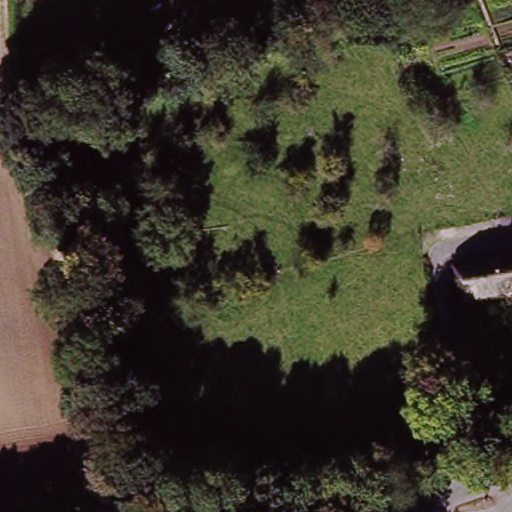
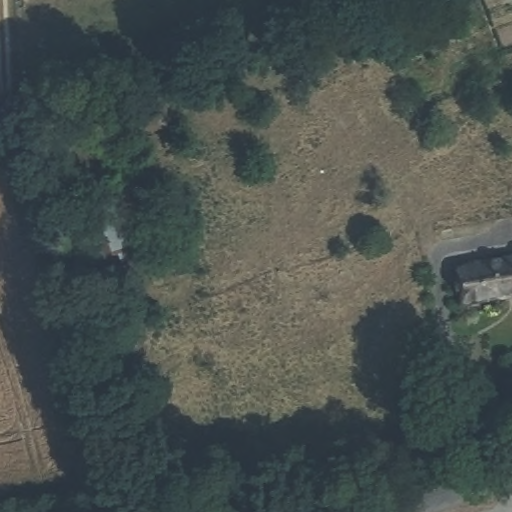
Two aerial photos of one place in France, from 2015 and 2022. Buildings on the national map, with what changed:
unchanged [(111,210),(128,260),(98,272),(80,221),(111,210)]
unchanged [(512,295),(472,301),(464,282),(457,282),(454,272),(464,270),(464,260),(512,254),(512,295)]

